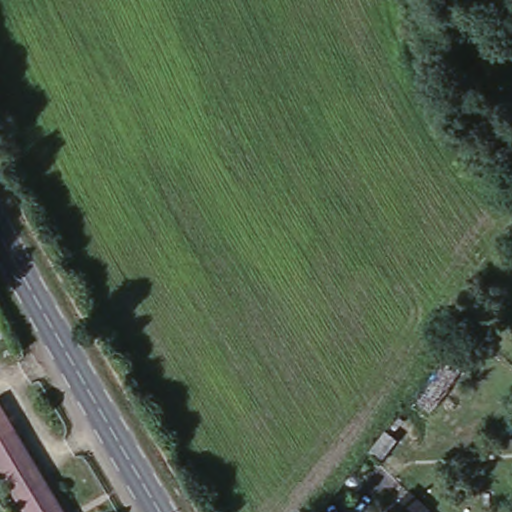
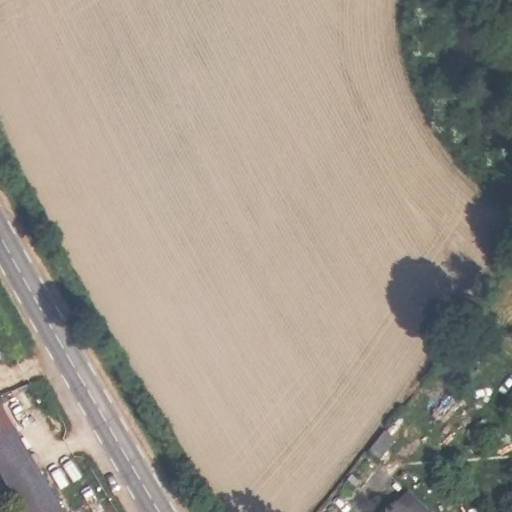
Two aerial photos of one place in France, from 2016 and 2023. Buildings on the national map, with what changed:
unchanged [(0,480),(0,415),(59,512),(20,512),(0,480)]
unchanged [(401,498),(414,512),(387,512),(401,498)]

